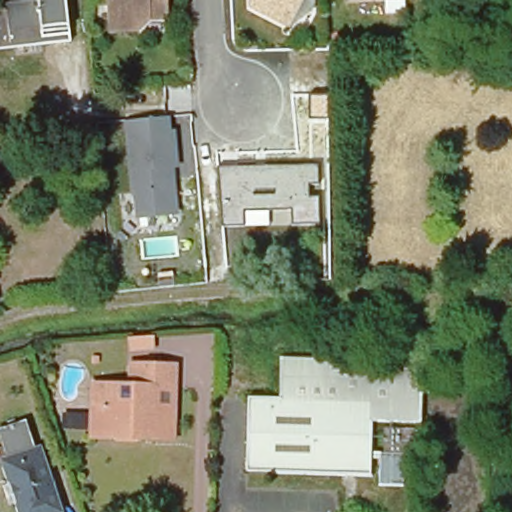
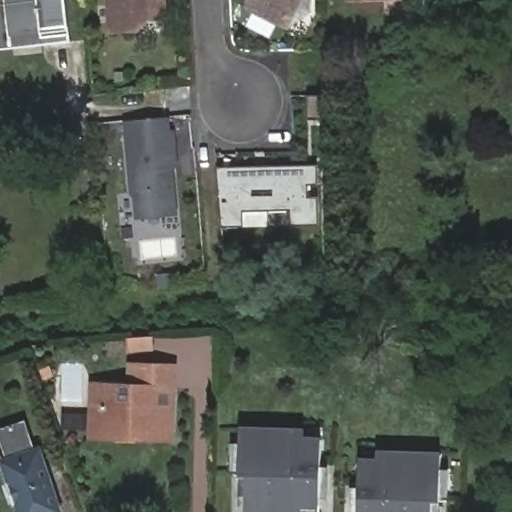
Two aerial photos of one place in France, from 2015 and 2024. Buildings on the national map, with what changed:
unchanged [(0,0),(64,0),(68,39),(69,45),(0,50),(0,0)]
unchanged [(167,12),(148,13),(137,30),(110,31),(109,0),(166,0),(167,12)]
unchanged [(288,19),(251,0),(297,0),(288,19)]
new [(325,96),(325,121),(305,122),(305,97),(325,96)]
unchanged [(137,219),(134,193),(130,194),(124,119),(170,117),(172,131),(178,130),(182,167),(174,169),(180,215),(137,219)]
unchanged [(317,164),(319,181),(309,181),(309,197),(318,197),(320,223),(294,225),(294,210),(269,211),(269,227),(222,228),(219,167),(317,164)]
demolished [(279,398),(281,354),(424,359),(421,419),(371,417),(372,401),(279,398)]
unchanged [(94,382),(131,382),(131,361),(172,362),(172,385),(170,434),(136,434),(116,433),(94,432),(94,427),(94,382)]
demolished [(247,443),(249,397),(279,398),(372,401),(371,417),(369,475),(368,475),(245,471),(245,460),(247,443)]
unchanged [(0,456),(0,426),(24,420),(32,451),(1,461),(0,456)]
new [(237,507),(239,475),(239,472),(232,471),(232,443),(240,443),(240,425),(304,428),(304,436),(323,437),(323,468),(328,468),(328,498),(323,498),(322,508),(304,507),(303,512),(245,512),(245,508),(237,507)]
demolished [(378,483),(380,430),(406,430),(401,484),(378,483)]
unchanged [(40,448),(61,512),(18,512),(1,461),(32,451),(40,448)]
new [(359,489),(358,459),(377,458),(376,450),(441,451),(442,468),(449,468),(449,498),(444,498),(444,502),(442,512),(352,512),(351,488),(359,489)]

